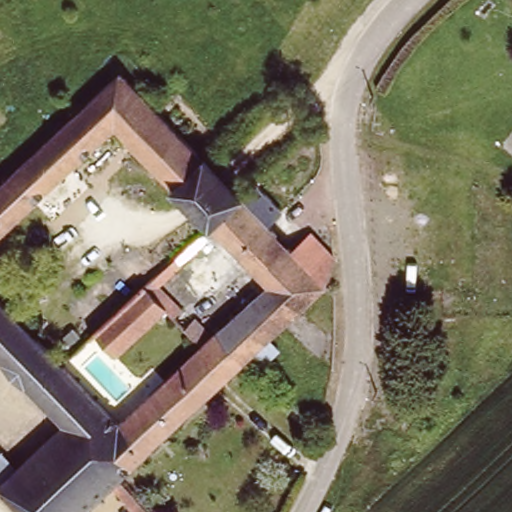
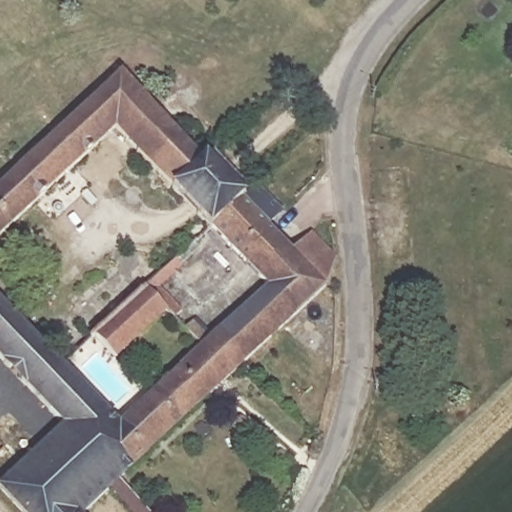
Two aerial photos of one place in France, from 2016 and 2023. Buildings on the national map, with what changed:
unchanged [(122,70),(125,73),(145,94),(146,96),(241,196),(210,226),(115,127),(0,235),(0,185),(122,70)]
unchanged [(241,196),(257,182),(285,210),(270,224),(292,248),(300,242),(311,230),(328,248),(336,255),(332,265),(335,296),(327,288),(245,364),(225,342),(215,332),(266,284),(210,226),(241,196)]
unchanged [(86,338),(89,336),(127,300),(132,295),(136,291),(165,264),(170,270),(150,289),(173,314),(165,321),(156,312),(106,359),(86,338)]
unchanged [(75,353),(63,364),(82,385),(110,413),(80,440),(78,442),(63,427),(0,360),(0,298),(45,346),(58,334),(75,353)]
unchanged [(117,421),(201,345),(184,326),(192,319),(209,337),(212,334),(215,332),(225,342),(245,364),(123,478),(120,482),(86,447),(80,440),(110,413),(117,421)]
unchanged [(151,512),(133,512),(112,489),(87,512),(21,512),(0,490),(0,487),(63,427),(78,442),(80,440),(86,447),(120,482),(123,478),(140,499),(147,493),(158,506),(151,512)]

